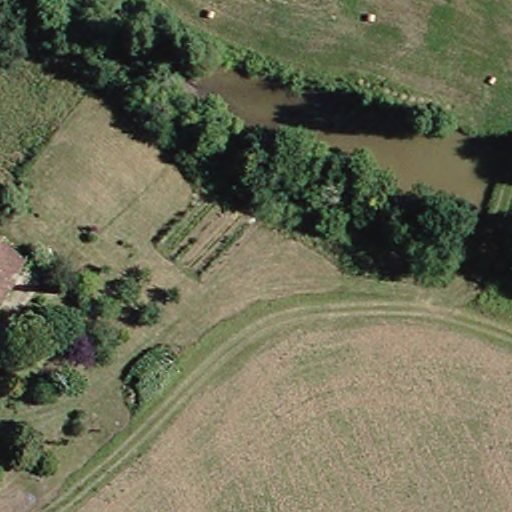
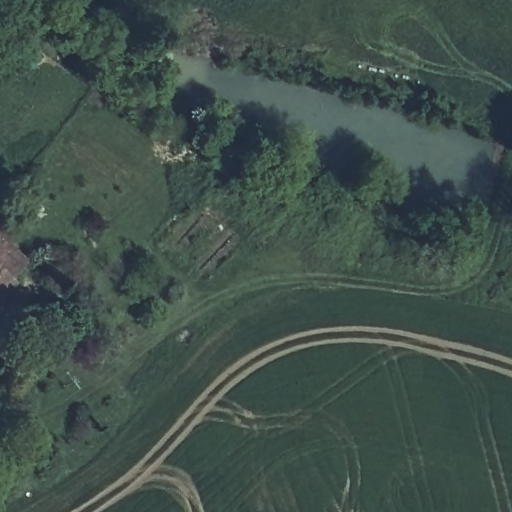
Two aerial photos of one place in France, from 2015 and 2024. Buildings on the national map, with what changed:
unchanged [(21,267),(5,285),(0,290),(0,249),(21,267)]

